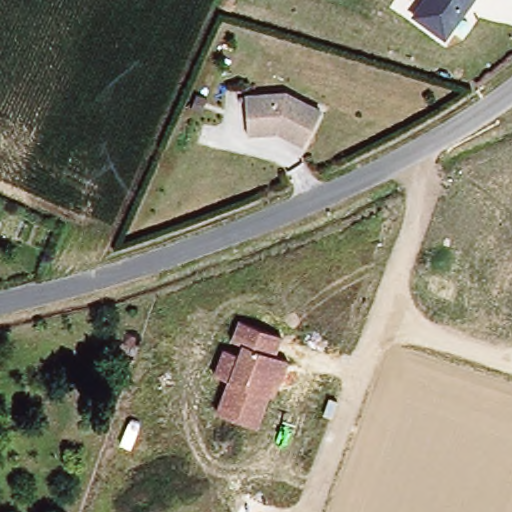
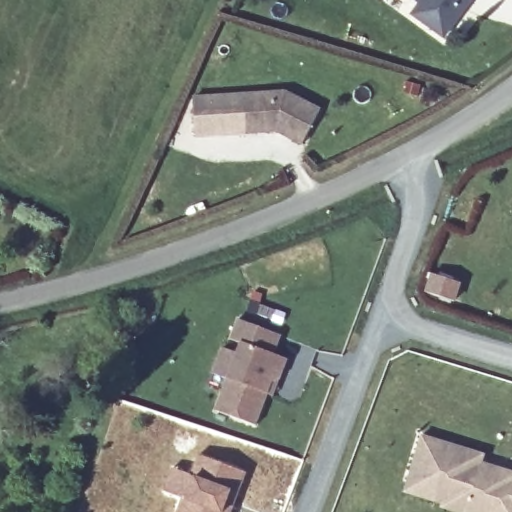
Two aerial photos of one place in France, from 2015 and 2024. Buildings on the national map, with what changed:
unchanged [(409,11),(417,0),(473,0),(444,39),(409,11)]
unchanged [(247,126),(243,87),(284,85),(321,103),(304,138),(276,125),(247,126)]
new [(434,274),(460,282),(454,300),(428,293),(434,274)]
unchanged [(282,335),(274,356),(286,361),(274,397),(270,395),(260,425),(216,411),(228,379),(216,375),(236,319),(282,335)]
new [(462,448),(459,458),(512,474),(512,502),(509,512),(448,512),(401,498),(421,436),(462,448)]
new [(165,491),(173,467),(192,474),(199,453),(245,469),(238,491),(231,488),(224,510),(231,512),(178,512),(184,497),(165,491)]

